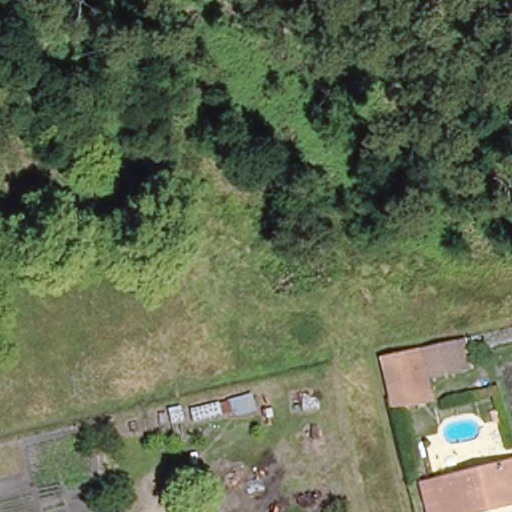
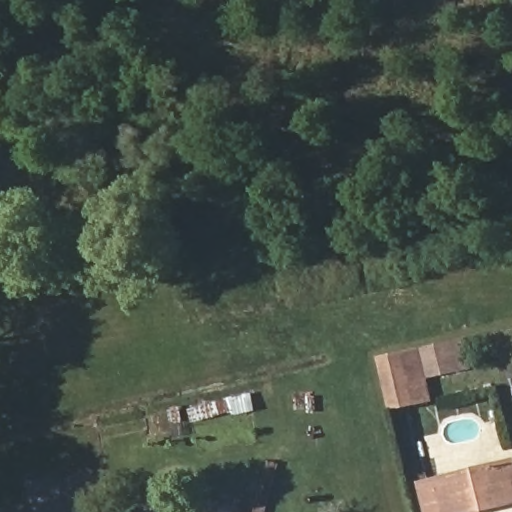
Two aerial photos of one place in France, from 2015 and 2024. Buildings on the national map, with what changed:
unchanged [(411,380),(416,400),(376,407),(366,361),(436,347),(442,374),(411,380)]
unchanged [(425,512),(419,491),(417,484),(505,464),(512,495),(512,506),(484,512),(425,512)]

